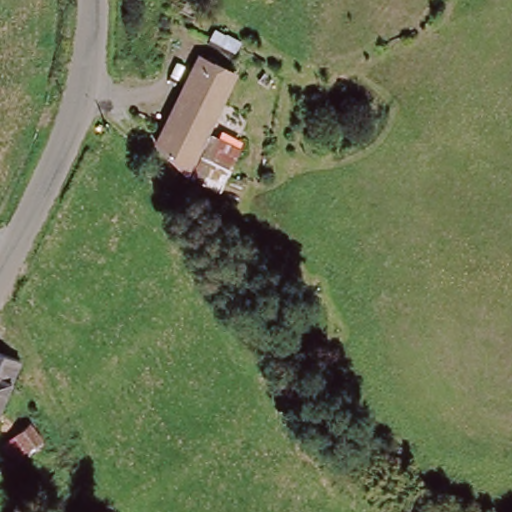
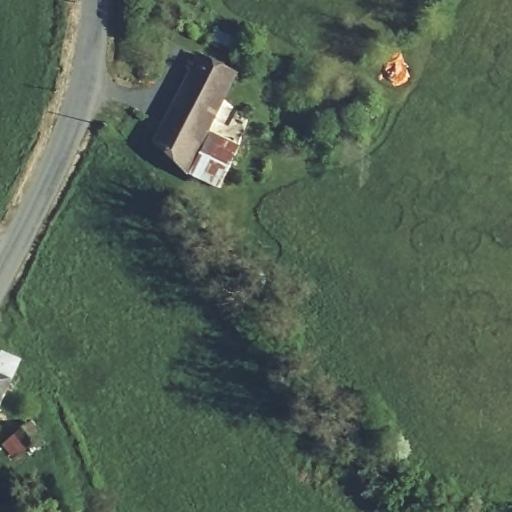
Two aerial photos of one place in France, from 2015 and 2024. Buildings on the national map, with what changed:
unchanged [(170,154),(157,136),(198,53),(233,71),(197,145),(201,147),(190,171),(185,167),(170,154)]
unchanged [(210,129),(240,141),(217,192),(190,171),(201,147),(210,129)]
unchanged [(0,402),(0,359),(15,367),(0,402)]
unchanged [(0,439),(18,428),(32,444),(6,462),(0,453),(0,439)]

